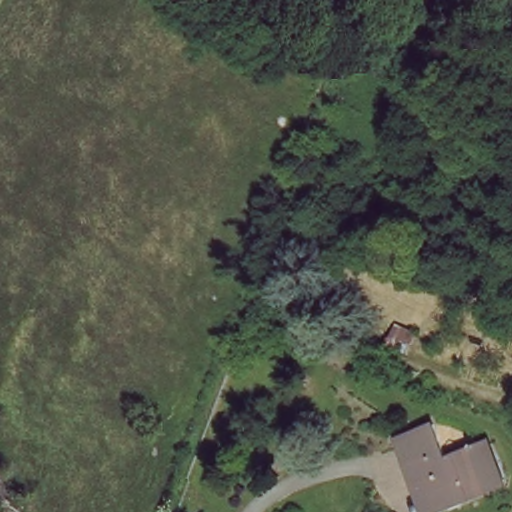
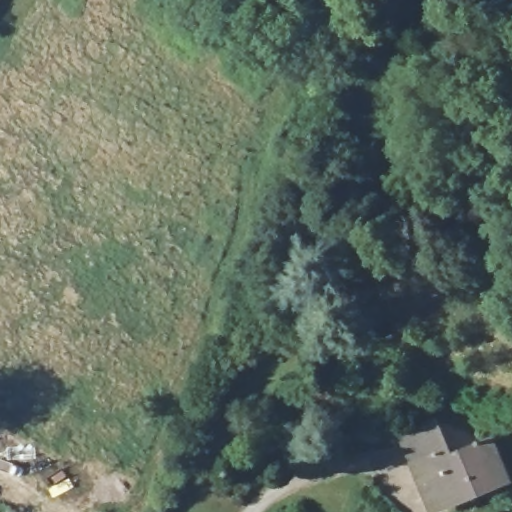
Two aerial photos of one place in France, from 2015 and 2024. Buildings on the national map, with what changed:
unchanged [(494,440),(512,488),(512,489),(461,512),(424,512),(395,437),(438,420),(455,456),(494,440)]

